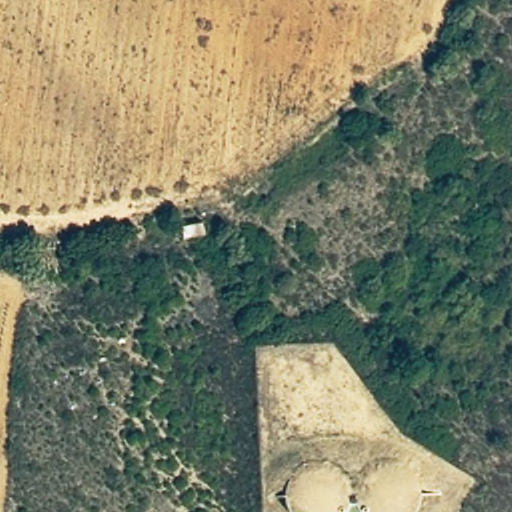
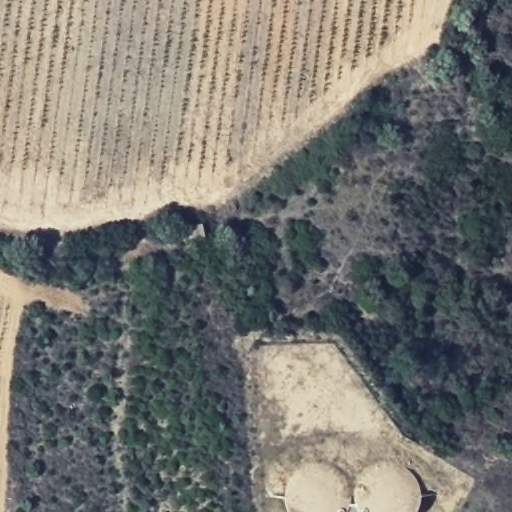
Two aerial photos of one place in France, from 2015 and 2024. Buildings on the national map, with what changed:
[]

